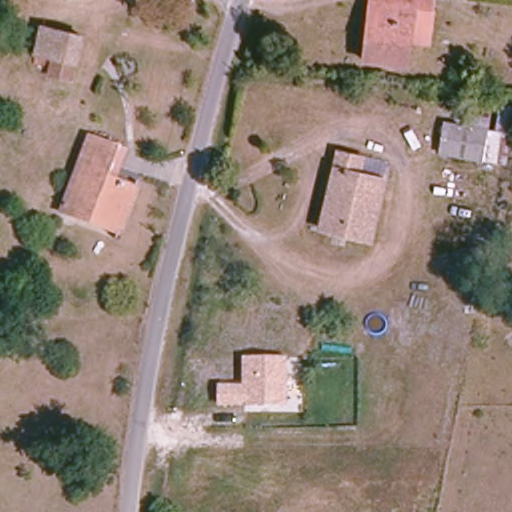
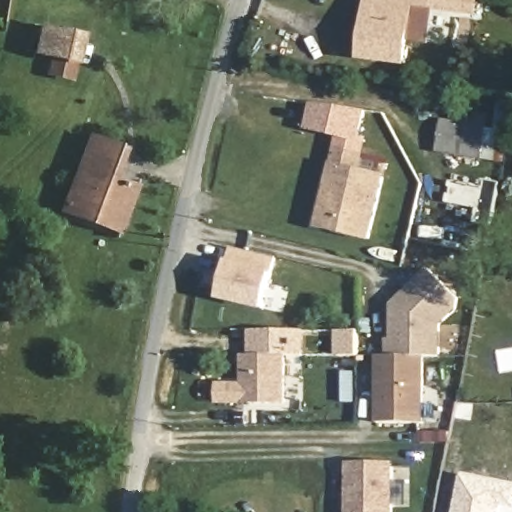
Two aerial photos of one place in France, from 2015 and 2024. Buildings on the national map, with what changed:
unchanged [(430,44),(411,42),(408,67),(363,63),(370,0),(436,0),(430,44)]
unchanged [(42,27),(81,38),(69,83),(65,94),(41,86),(47,61),(49,57),(35,52),(39,41),(42,27)]
new [(337,150),(334,149),(335,139),(303,130),(310,104),(367,111),(361,136),(367,138),(365,155),(363,155),(337,150)]
unchanged [(439,151),(444,121),(486,128),(480,157),(439,151)]
unchanged [(67,195),(84,145),(87,136),(116,146),(114,152),(107,176),(131,185),(115,230),(77,216),(61,211),(67,195)]
unchanged [(325,228),(337,150),(363,155),(362,170),(386,174),(375,236),(325,228)]
new [(276,258),(273,270),(275,272),(265,312),(218,301),(228,263),(226,263),(230,247),(276,258)]
new [(388,340),(393,340),(392,327),(397,328),(397,316),(400,313),(392,306),(428,270),(457,298),(455,309),(439,325),(439,356),(388,356),(388,340)]
new [(249,357),(247,330),(303,330),(305,357),(286,356),(249,357)]
unchanged [(218,406),(219,384),(243,384),(242,357),(286,356),(287,405),(218,406)]
new [(377,423),(377,357),(427,357),(425,424),(377,423)]
new [(391,512),(348,512),(347,466),(390,466),(391,512)]
new [(512,484),(512,489),(507,512),(456,512),(462,475),(512,484)]

